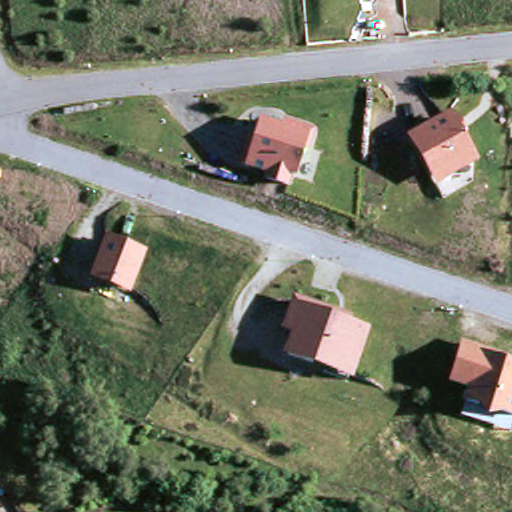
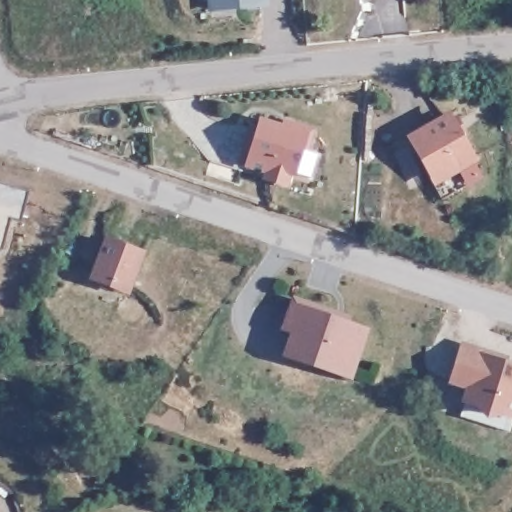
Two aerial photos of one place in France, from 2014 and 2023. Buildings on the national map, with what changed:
new [(209,14),(207,0),(270,0),(270,5),(209,14)]
demolished [(323,3),(323,0),(349,0),(345,0),(323,3)]
demolished [(362,4),(362,0),(388,0),(388,1),(362,4)]
unchanged [(451,110),(481,164),(435,188),(406,139),(451,110)]
unchanged [(313,129),(298,184),(244,171),(259,115),(313,129)]
new [(24,222),(14,219),(5,250),(0,249),(0,183),(32,191),(24,222)]
unchanged [(150,253),(137,298),(87,282),(105,236),(150,253)]
unchanged [(370,329),(353,379),(283,357),(290,334),(282,332),(292,300),(370,329)]
unchanged [(512,360),(512,417),(463,404),(466,389),(449,384),(460,343),(512,360)]

